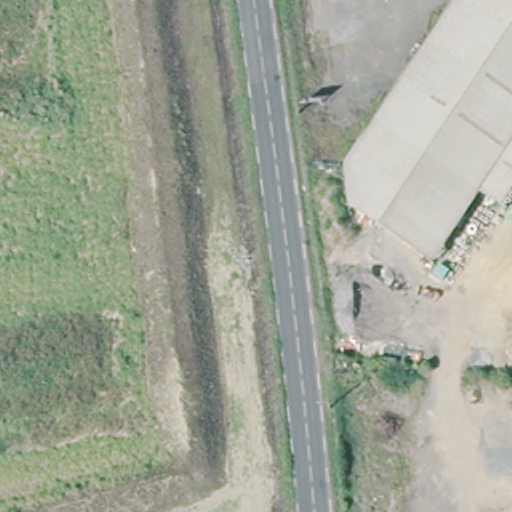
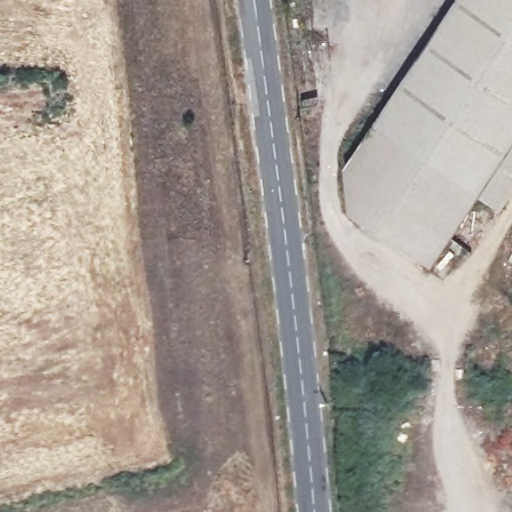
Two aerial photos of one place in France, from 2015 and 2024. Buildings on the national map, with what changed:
unchanged [(394,101),(459,0),(512,0),(512,152),(481,198),(375,129),(394,101)]
unchanged [(481,198),(435,269),(352,215),(346,175),(375,129),(481,198)]
unchanged [(495,208),(481,198),(512,152),(512,184),(495,208)]

